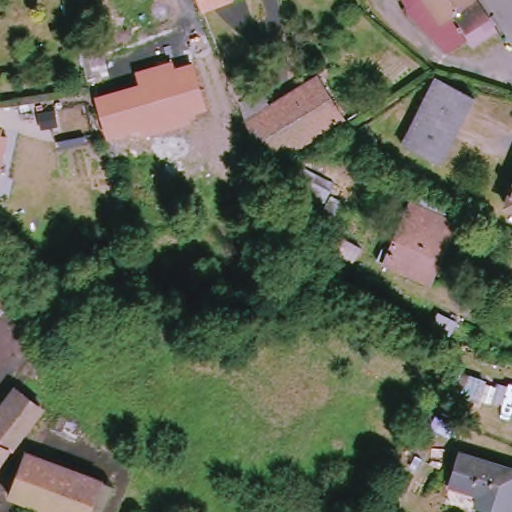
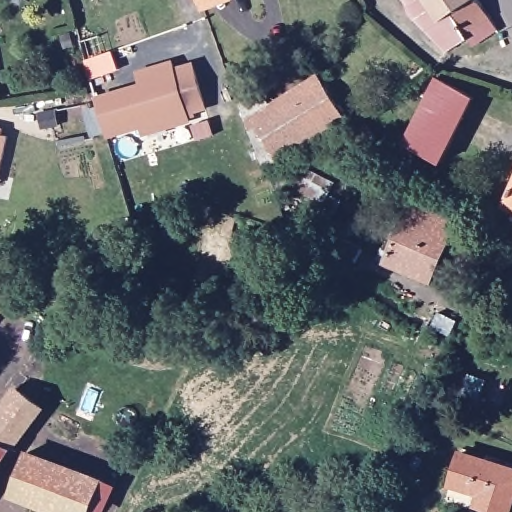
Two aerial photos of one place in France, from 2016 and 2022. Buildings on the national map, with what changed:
unchanged [(199,0),(229,0),(203,11),(199,0)]
unchanged [(468,45),(466,41),(463,37),(457,42),(443,51),(405,12),(404,5),(401,0),(474,0),(485,15),(494,27),(468,45)]
unchanged [(96,95),(81,42),(96,37),(112,97),(139,82),(135,71),(173,61),(175,67),(193,62),(206,107),(195,112),(196,117),(190,120),(192,124),(142,137),(140,130),(108,138),(97,101),(96,95)]
unchanged [(268,162),(242,121),(310,79),(336,120),(268,162)]
unchanged [(442,167),(403,148),(438,82),(475,101),(442,167)]
unchanged [(376,142),(355,156),(348,143),(368,129),(376,142)]
unchanged [(3,134),(0,147),(0,133),(3,134)]
unchanged [(343,223),(295,207),(308,174),(354,192),(343,223)]
unchanged [(509,193),(507,192),(512,180),(512,214),(503,210),(509,193)]
unchanged [(381,265),(386,255),(380,252),(395,222),(401,224),(409,207),(452,226),(446,240),(424,286),(416,283),(381,265)]
unchanged [(0,311),(0,282),(14,295),(0,311)]
unchanged [(180,337),(151,341),(149,320),(178,317),(180,337)]
unchanged [(15,392),(34,407),(5,448),(7,450),(0,459),(0,412),(15,392)]
unchanged [(94,505),(90,512),(47,512),(12,498),(28,454),(113,488),(106,508),(94,505)]
unchanged [(488,512),(477,508),(481,496),(452,486),(463,454),(512,472),(512,502),(509,512),(488,512)]

